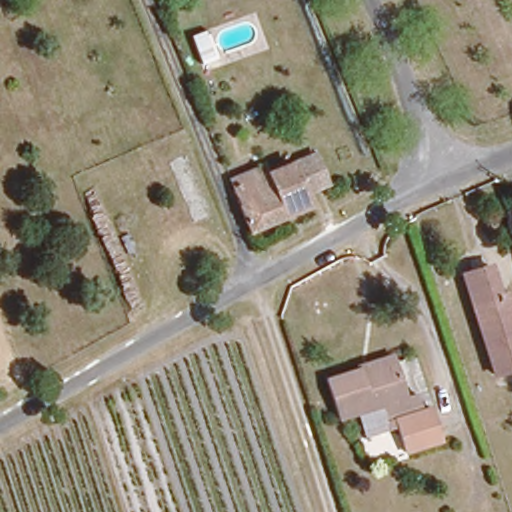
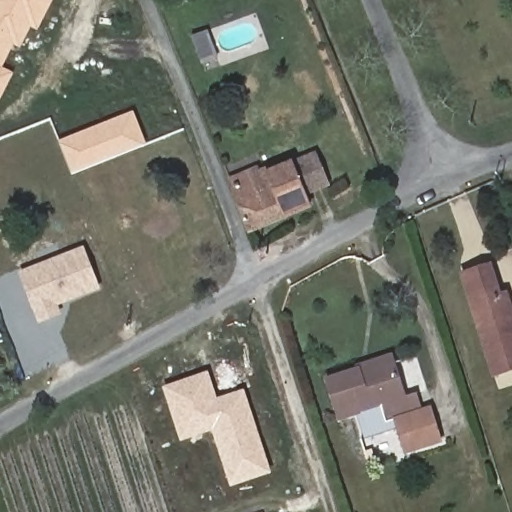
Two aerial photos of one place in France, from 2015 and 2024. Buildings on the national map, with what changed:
new [(30,27),(20,50),(14,45),(2,67),(14,73),(0,101),(0,0),(53,0),(38,32),(30,27)]
new [(59,142),(135,112),(147,145),(72,175),(59,142)]
unchanged [(310,192),(312,207),(291,216),(272,172),(317,154),(321,152),(332,184),(330,184),(310,192)]
unchanged [(231,177),(246,172),(263,166),(265,169),(270,167),(272,172),(291,216),(252,232),(231,177)]
new [(87,242),(104,280),(60,298),(65,307),(45,315),(26,268),(87,242)]
unchanged [(495,292),(507,292),(512,309),(512,369),(494,375),(463,272),(488,264),(495,292)]
unchanged [(418,395),(423,407),(432,406),(443,440),(403,453),(395,427),(364,435),(357,416),(341,419),(327,377),(362,366),(394,356),(397,365),(408,396),(418,395)]
new [(214,430),(181,441),(165,388),(207,375),(215,402),(245,392),(272,472),(231,487),(214,430)]

